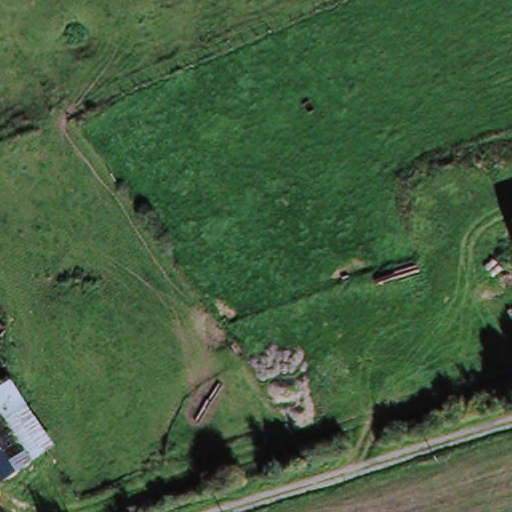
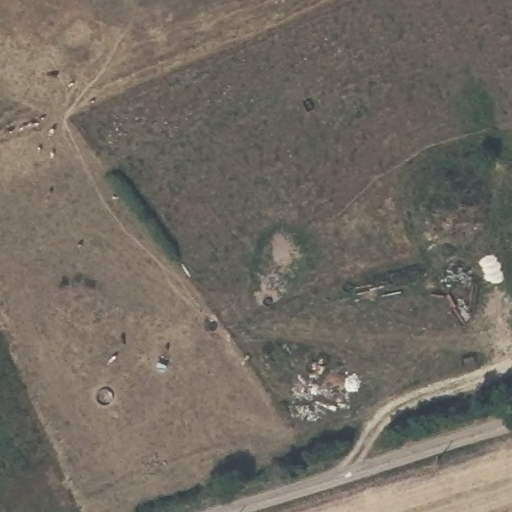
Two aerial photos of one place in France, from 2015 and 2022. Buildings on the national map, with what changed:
demolished [(0,421),(0,371),(5,379),(9,376),(57,446),(2,482),(0,478),(0,469),(22,453),(0,421)]
demolished [(0,469),(0,421),(22,453),(0,469)]

